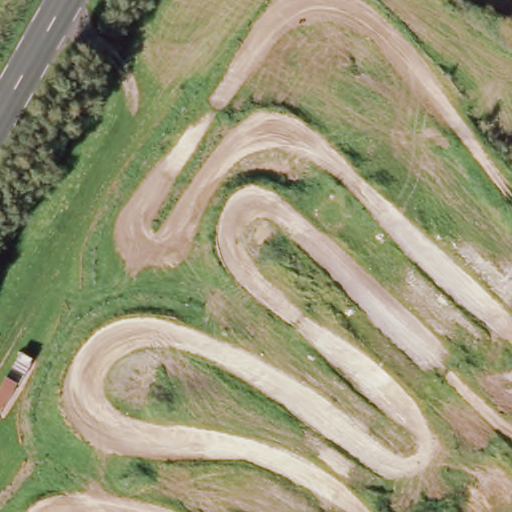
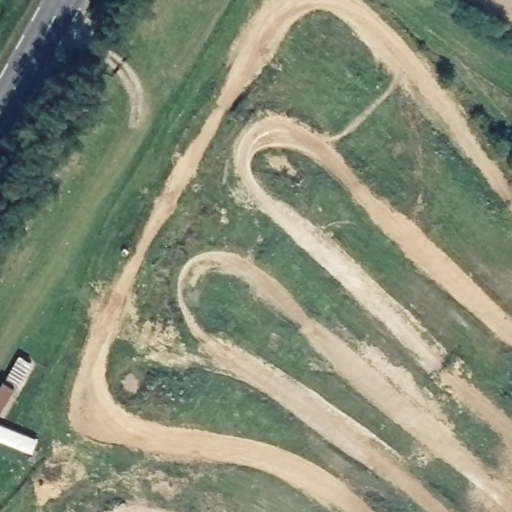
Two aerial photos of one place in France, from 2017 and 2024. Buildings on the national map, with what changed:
unchanged [(4,381),(19,356),(33,362),(17,387),(1,416),(0,415),(0,387),(4,381)]

